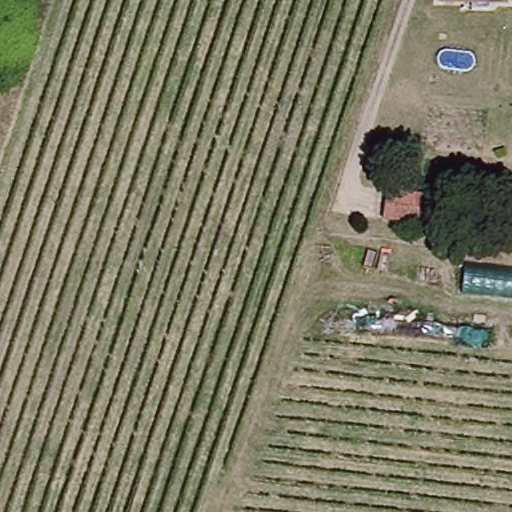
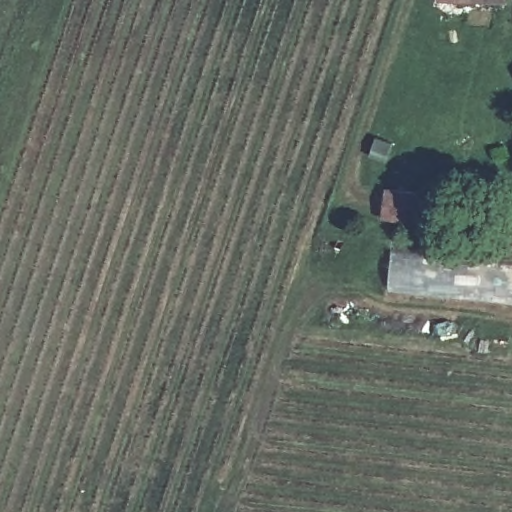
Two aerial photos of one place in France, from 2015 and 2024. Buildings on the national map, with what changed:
unchanged [(416,221),(384,217),(388,190),(419,194),(416,221)]
new [(391,247),(434,252),(468,260),(466,275),(463,274),(461,295),(424,295),(386,291),(391,247)]

